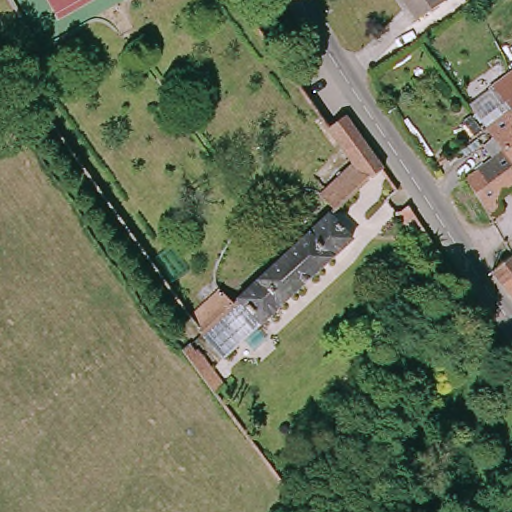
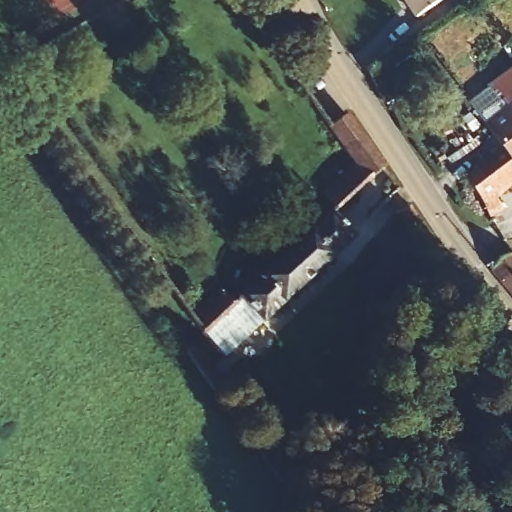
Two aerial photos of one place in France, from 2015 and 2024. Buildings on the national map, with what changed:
unchanged [(426,10),(420,0),(441,0),(426,10)]
unchanged [(467,105),(512,73),(512,141),(499,151),(467,105)]
unchanged [(331,127),(345,115),(384,166),(381,169),(379,166),(333,209),(322,195),(356,161),(331,127)]
unchanged [(499,151),(512,141),(512,169),(499,151)]
unchanged [(512,169),(512,183),(492,198),(498,206),(486,216),(460,181),(499,151),(512,169)]
unchanged [(354,239),(264,323),(242,299),(331,215),(354,239)]
unchanged [(512,264),(512,299),(494,278),(507,268),(512,264)]
unchanged [(239,306),(204,335),(191,318),(224,288),(239,306)]
unchanged [(199,338),(230,381),(220,389),(188,347),(199,338)]

